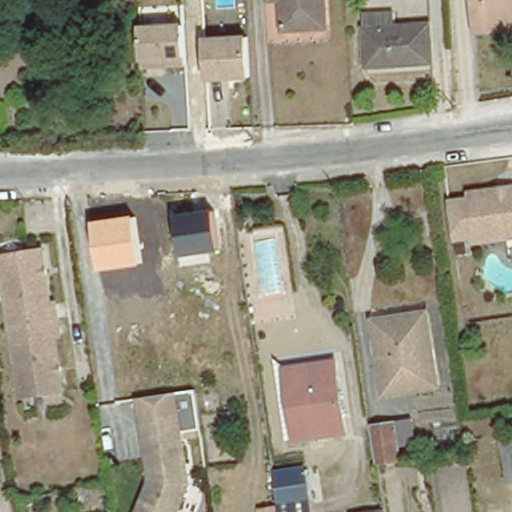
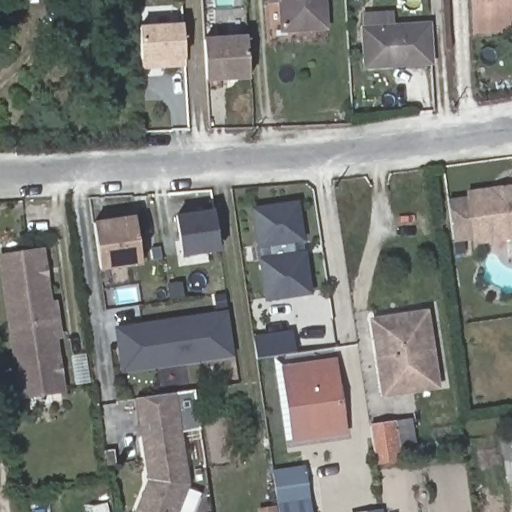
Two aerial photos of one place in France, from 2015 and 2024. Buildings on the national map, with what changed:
unchanged [(325,27),(283,29),(282,0),(324,0),(325,27)]
unchanged [(491,31),(477,31),(475,0),(512,0),(512,30),(491,31)]
unchanged [(430,61),(368,65),(366,28),(365,13),(393,11),(394,26),(429,24),(430,61)]
unchanged [(145,70),(141,26),(185,23),(189,68),(145,70)]
unchanged [(208,81),(205,37),(248,34),(251,79),(208,81)]
unchanged [(491,191),(496,194),(506,193),(510,188),(512,188),(512,237),(472,243),(465,195),(491,191)]
new [(297,204),(302,239),(293,240),(296,255),(305,254),(310,292),(269,299),(263,260),(272,259),(269,244),(260,246),(255,210),(297,204)]
unchanged [(224,252),(183,258),(177,212),(217,207),(224,252)]
unchanged [(143,263),(101,269),(95,220),(138,215),(143,263)]
unchanged [(56,316),(66,386),(20,393),(9,323),(0,260),(0,253),(46,247),(56,316)]
new [(113,325),(229,309),(235,355),(120,372),(113,325)]
unchanged [(424,316),(434,383),(388,390),(378,323),(424,316)]
unchanged [(346,433),(296,440),(291,408),(284,409),(278,373),(286,372),(337,366),(346,433)]
unchanged [(142,422),(136,398),(195,391),(202,427),(182,432),(180,417),(142,422)]
unchanged [(151,479),(142,422),(180,417),(182,432),(189,484),(178,512),(137,512),(141,502),(151,479)]
unchanged [(377,464),(371,424),(395,422),(401,461),(377,464)]
unchanged [(510,489),(504,459),(492,461),(490,448),(512,445),(512,489),(510,489)]
unchanged [(305,469),(311,512),(280,512),(274,474),(305,469)]
unchanged [(277,507),(277,512),(257,512),(257,510),(277,507)]

